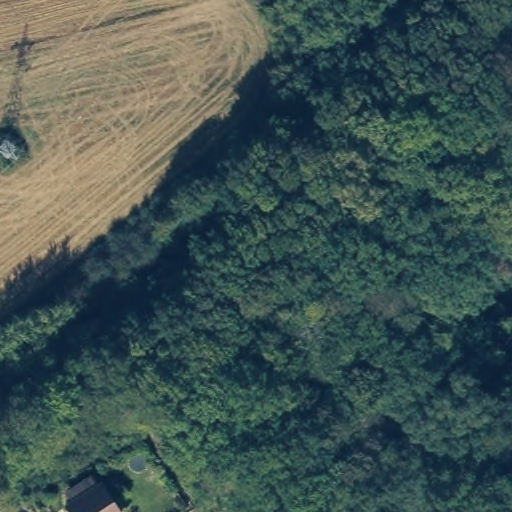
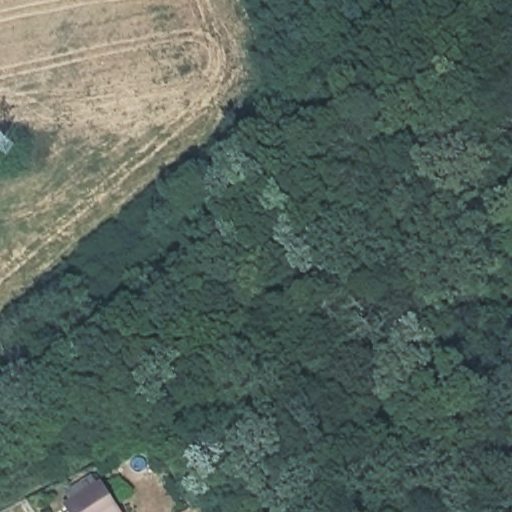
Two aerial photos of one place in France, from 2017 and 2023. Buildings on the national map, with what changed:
unchanged [(108,512),(78,512),(65,492),(99,471),(120,504),(108,512)]

